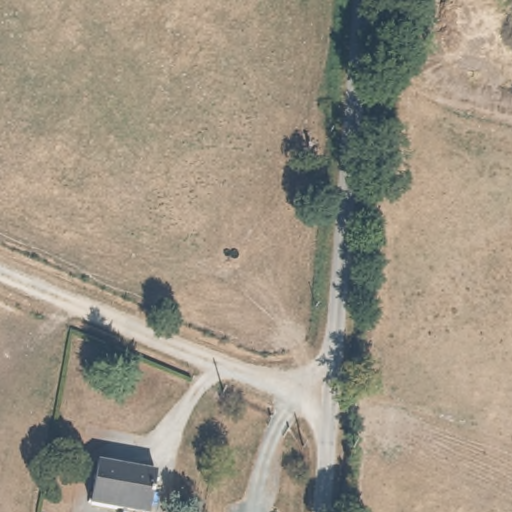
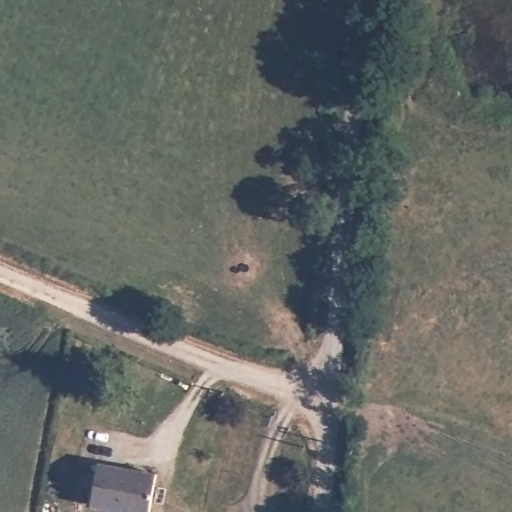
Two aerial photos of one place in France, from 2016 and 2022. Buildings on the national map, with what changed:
unchanged [(93,503),(101,460),(160,471),(152,512),(143,512),(93,503)]

